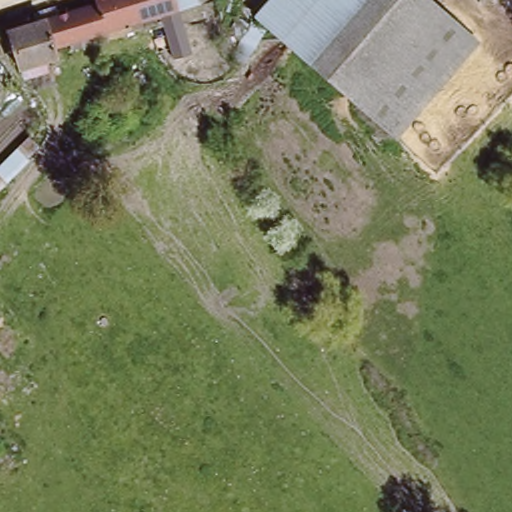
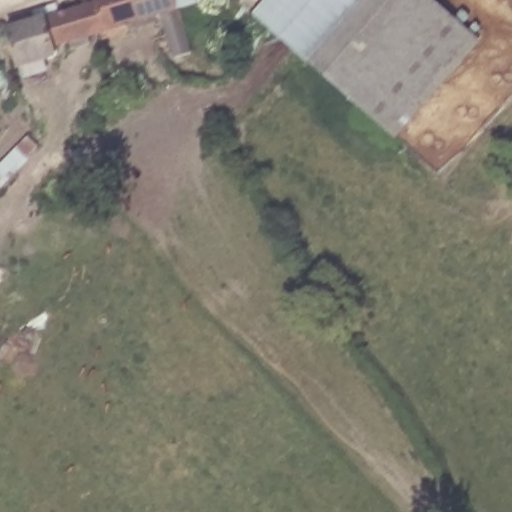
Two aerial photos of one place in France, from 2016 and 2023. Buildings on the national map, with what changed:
unchanged [(189,53),(169,59),(156,19),(52,49),(55,59),(17,70),(2,29),(35,20),(34,13),(53,7),(55,14),(93,3),(92,0),(173,0),(176,11),(189,53)]
unchanged [(176,11),(173,0),(211,0),(176,11)]
unchanged [(269,0),(366,0),(309,68),(252,20),(269,0)]
unchanged [(366,0),(425,0),(477,44),(394,139),(309,68),(366,0)]
unchanged [(25,160),(0,186),(0,168),(15,153),(25,160)]

